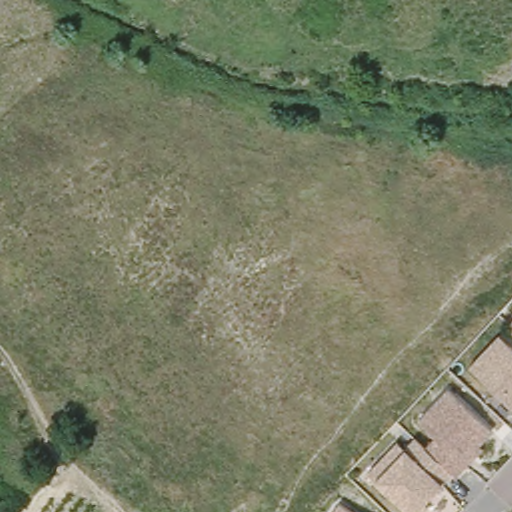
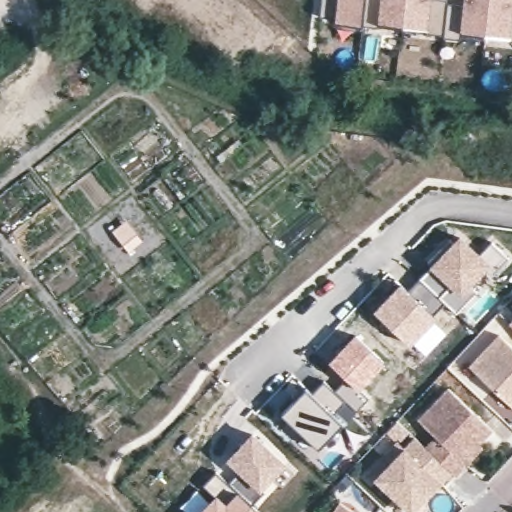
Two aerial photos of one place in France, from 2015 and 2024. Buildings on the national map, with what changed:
new [(370,0),(367,27),(341,24),(341,20),(326,19),(328,0),(370,0)]
new [(382,33),(382,29),(367,27),(370,0),(451,0),(450,5),(447,36),(432,34),(432,38),(407,35),(382,33)]
new [(487,47),(461,45),(462,42),(447,41),(447,36),(450,5),(465,6),(466,0),(512,0),(512,42),(512,46),(487,44),(487,47)]
new [(456,313),(439,297),(420,279),(433,267),(430,263),(450,242),(452,244),(460,235),(480,254),(492,242),(508,258),(493,274),(487,268),(468,284),(477,291),(456,313)]
new [(439,297),(445,302),(434,315),(409,291),(420,279),(439,297)]
new [(400,283),(434,315),(432,317),(435,320),(410,345),(373,310),(400,283)]
unchanged [(510,325),(512,322),(512,327),(510,325)]
new [(385,362),(361,389),(369,397),(355,410),(346,402),(334,390),(345,377),(328,361),(355,335),(385,362)]
unchanged [(512,347),(512,408),(468,367),(499,335),(512,347)]
new [(292,395),(302,385),(306,388),(312,394),(325,381),(346,402),(334,415),(345,425),(321,450),(282,413),(295,399),(292,395)]
unchanged [(451,477),(438,465),(425,453),(435,442),(418,425),(448,393),(492,435),(462,465),(465,469),(455,481),(451,477)]
unchanged [(451,477),(419,512),(403,512),(375,485),(367,479),(397,448),(403,455),(415,443),(418,446),(425,453),(438,465),(451,477)]
new [(216,496),(203,485),(216,473),(238,492),(258,512),(200,512),(216,496)]
unchanged [(338,503),(352,512),(332,512),(338,503)]

